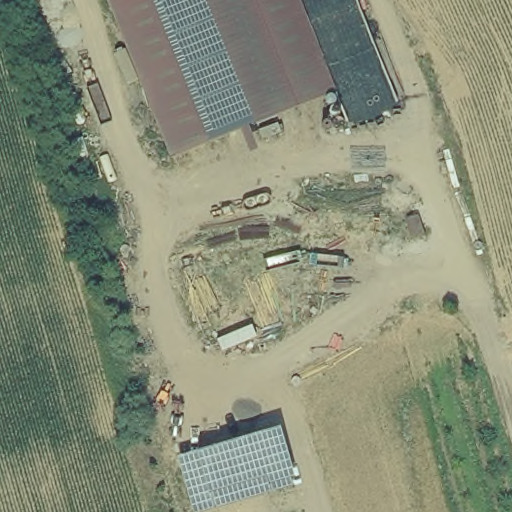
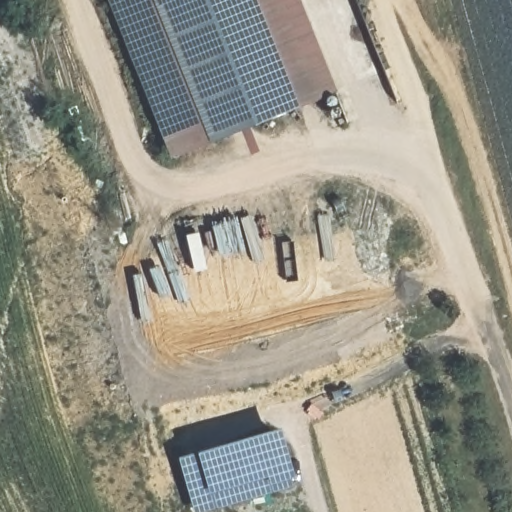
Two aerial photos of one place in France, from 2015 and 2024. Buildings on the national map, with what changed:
unchanged [(109,0),(300,0),(336,91),(172,157),(109,0)]
unchanged [(202,512),(194,512),(178,456),(279,426),(295,486),(202,512)]

